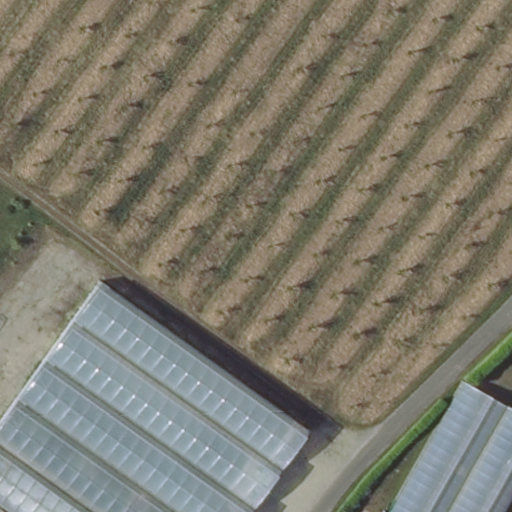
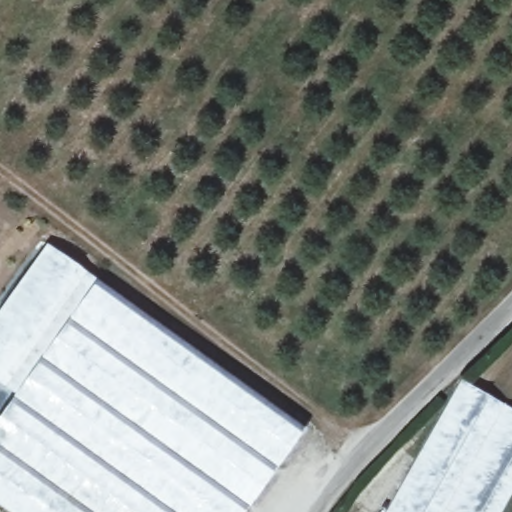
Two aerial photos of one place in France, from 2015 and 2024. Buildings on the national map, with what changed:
new [(0,313),(48,246),(86,272),(5,386),(0,383),(0,313)]
unchanged [(41,359),(100,282),(306,431),(249,508),(41,359)]
unchanged [(0,507),(0,417),(41,359),(249,508),(247,512),(7,512),(0,507)]
unchanged [(512,409),(512,480),(495,512),(381,512),(457,379),(512,409)]

